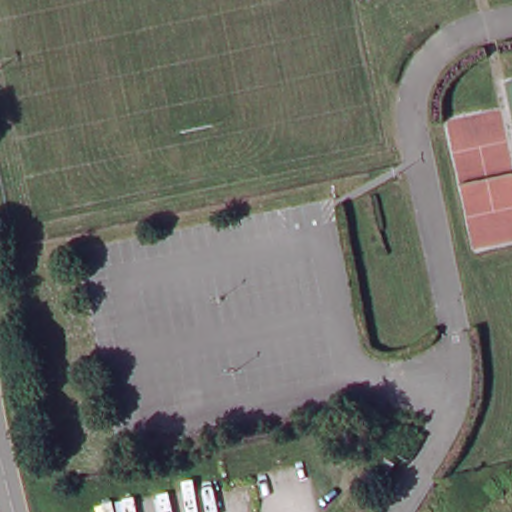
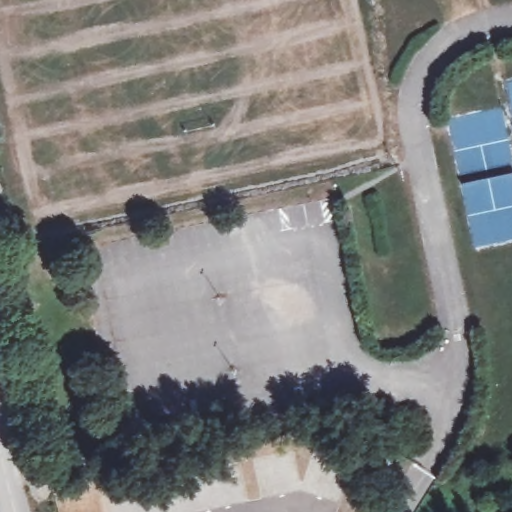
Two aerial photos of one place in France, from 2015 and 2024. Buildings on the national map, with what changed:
unchanged [(383,469),(390,458),(399,464),(391,475),(383,469)]

